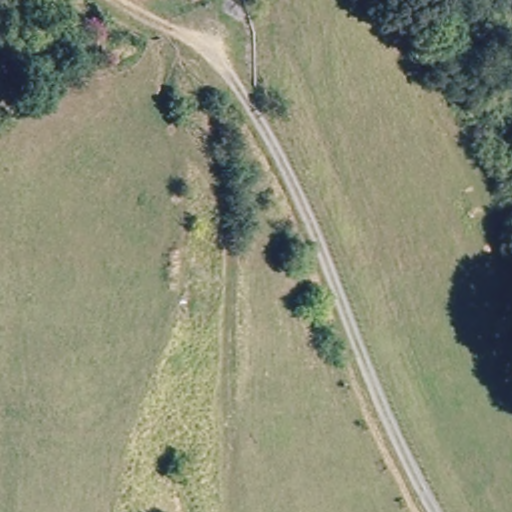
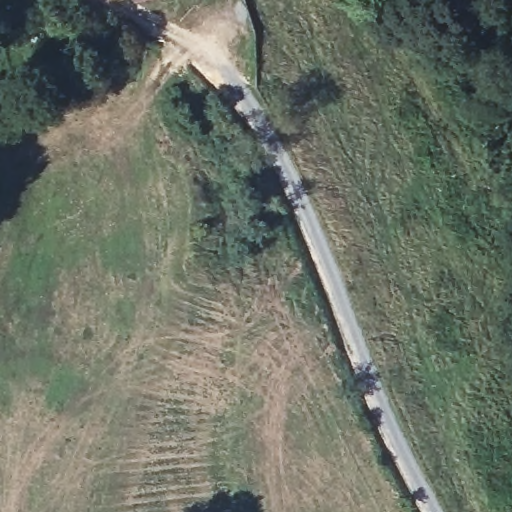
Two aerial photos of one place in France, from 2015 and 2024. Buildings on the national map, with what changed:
[]

